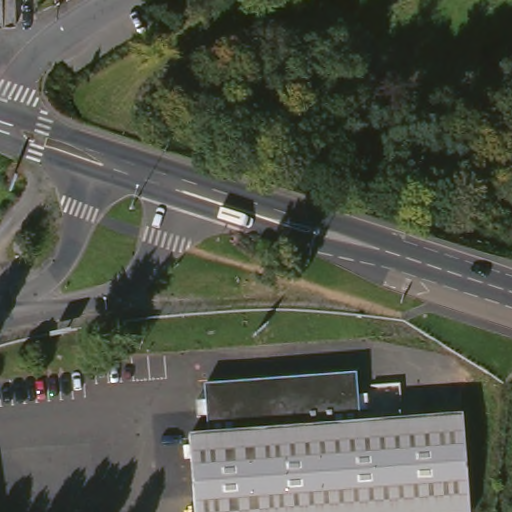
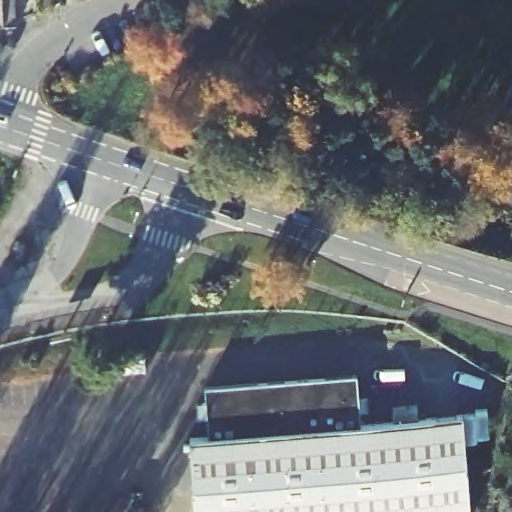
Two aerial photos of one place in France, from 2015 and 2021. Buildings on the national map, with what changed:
unchanged [(25,0),(25,21),(12,23),(0,23),(0,0),(25,0)]
unchanged [(366,375),(370,424),(472,417),(480,512),(203,512),(198,438),(217,437),(213,386),(366,375)]

